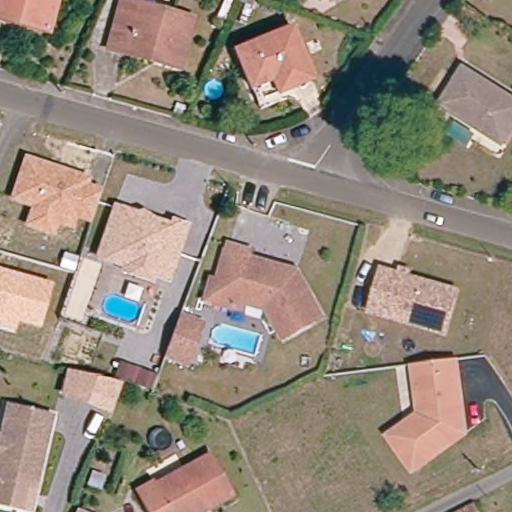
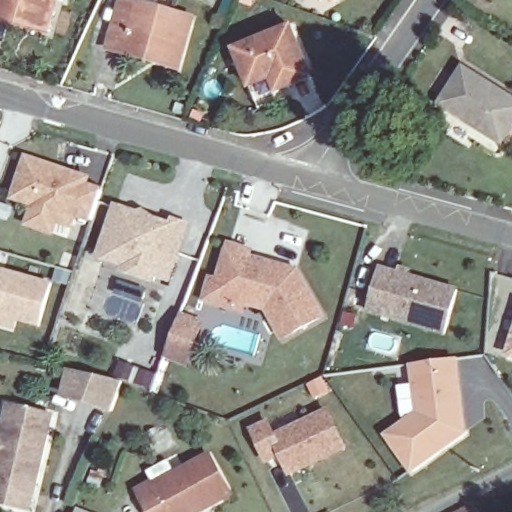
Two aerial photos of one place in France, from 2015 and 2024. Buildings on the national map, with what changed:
unchanged [(49,37),(0,23),(0,0),(45,0),(58,4),(49,37)]
unchanged [(336,0),(334,1),(334,0),(336,0)]
unchanged [(113,43),(124,2),(194,21),(179,70),(162,65),(111,51),(113,43)]
unchanged [(273,80),(251,88),(237,51),(293,29),(313,81),(289,90),(278,94),(273,80)]
unchanged [(512,100),(512,127),(502,144),(441,106),(463,69),(512,100)]
unchanged [(378,133),(382,148),(374,151),(370,135),(378,133)]
unchanged [(9,202),(24,155),(93,178),(90,184),(101,188),(89,224),(76,219),(74,229),(58,225),(54,236),(24,226),(29,208),(9,202)]
unchanged [(155,276),(158,267),(133,259),(129,269),(99,259),(116,208),(141,216),(143,213),(154,220),(174,227),(175,221),(189,226),(182,249),(171,282),(155,276)]
unchanged [(216,278),(224,280),(235,244),(256,250),(255,258),(279,265),(290,269),(302,272),(325,317),(291,336),(278,310),(251,303),(249,310),(223,304),(210,300),(216,278)]
unchanged [(0,326),(0,267),(54,283),(41,329),(19,323),(18,330),(0,326)]
unchanged [(375,297),(383,270),(459,292),(447,336),(384,318),(371,314),(375,297)]
unchanged [(166,358),(168,355),(170,349),(180,322),(182,319),(202,326),(191,356),(188,366),(166,358)]
new [(512,333),(512,359),(504,357),(512,333)]
unchanged [(414,474),(389,439),(421,417),(414,367),(457,362),(459,381),(461,399),(466,437),(414,474)]
unchanged [(126,390),(112,385),(117,371),(131,376),(126,390)]
unchanged [(109,419),(58,400),(66,378),(120,390),(109,419)]
unchanged [(146,397),(133,392),(138,378),(151,383),(146,397)]
unchanged [(0,429),(5,408),(49,419),(33,490),(28,512),(17,512),(0,508),(0,429)]
new [(289,479),(280,458),(268,465),(249,429),(269,420),(274,430),(328,409),(348,451),(289,479)]
unchanged [(140,490),(154,483),(155,487),(214,456),(235,494),(220,503),(202,512),(152,512),(140,490)]
unchanged [(476,505),(480,512),(462,512),(476,505)]
unchanged [(79,511),(82,512),(79,512),(79,511)]

